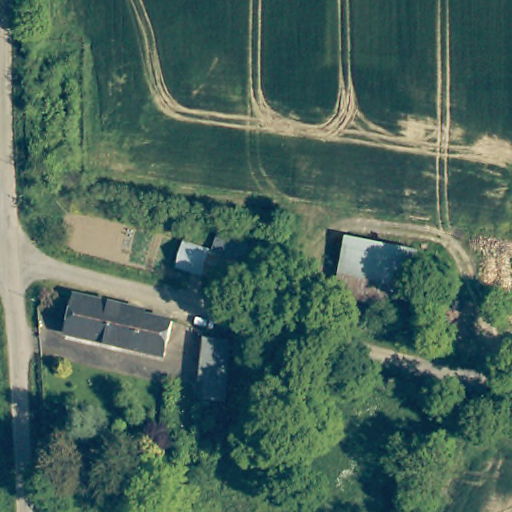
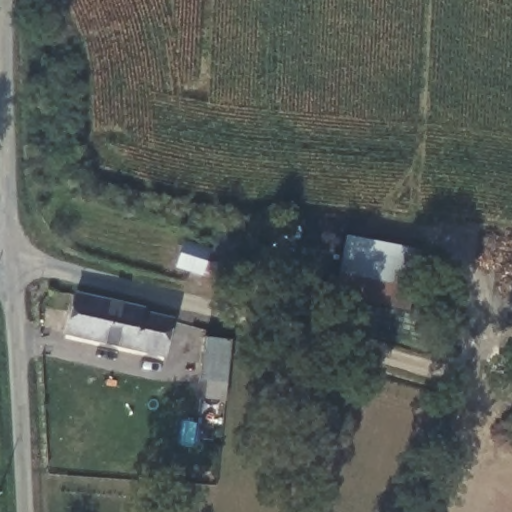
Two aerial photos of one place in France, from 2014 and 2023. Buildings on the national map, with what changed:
unchanged [(243,254),(237,279),(178,264),(183,240),(186,241),(243,254)]
unchanged [(422,254),(411,312),(340,297),(351,240),(422,254)]
unchanged [(264,259),(260,278),(241,274),(246,255),(264,259)]
unchanged [(68,333),(75,295),(151,310),(150,314),(155,316),(173,321),(168,352),(152,349),(68,333)]
unchanged [(205,337),(232,338),(228,382),(202,379),(205,337)]

